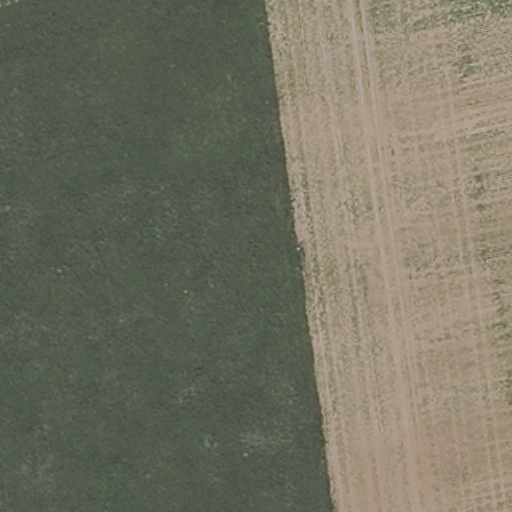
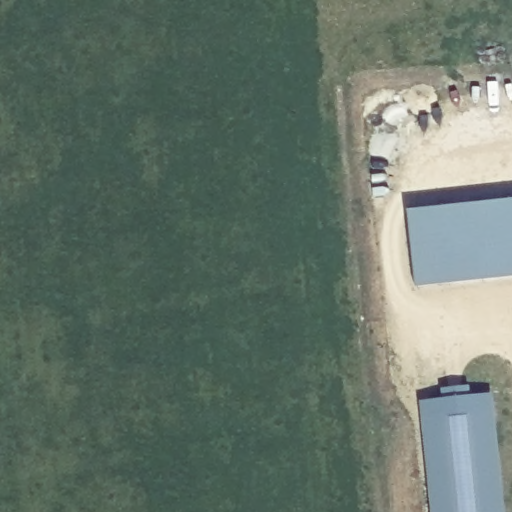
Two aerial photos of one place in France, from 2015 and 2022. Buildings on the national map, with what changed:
new [(512,277),(415,287),(407,212),(512,201),(512,277)]
new [(442,390),(468,387),(469,397),(443,400),(442,390)]
new [(498,512),(437,512),(425,402),(487,395),(498,512)]

